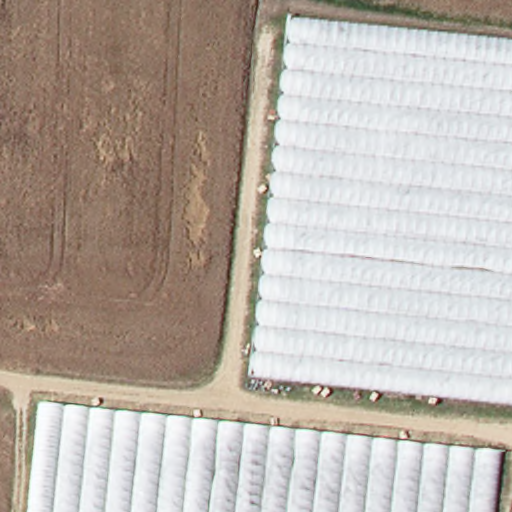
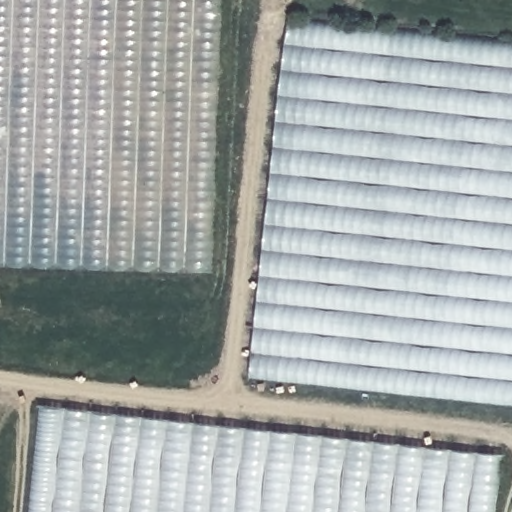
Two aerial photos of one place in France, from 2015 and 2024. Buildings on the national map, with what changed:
new [(0,264),(0,0),(227,0),(216,269),(0,264)]
unchanged [(254,373),(296,17),(512,40),(512,403),(254,373)]
unchanged [(501,452),(494,512),(35,512),(46,404),(501,452)]

